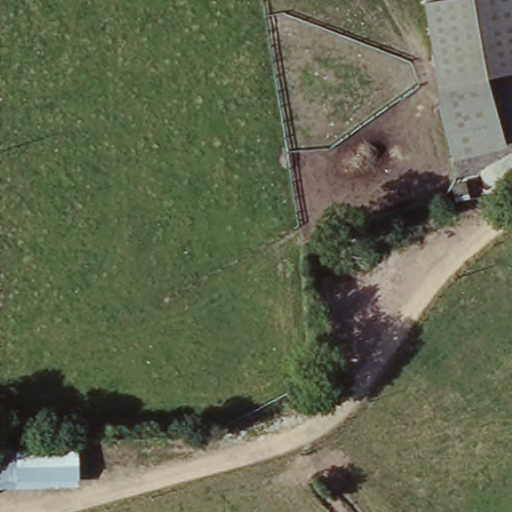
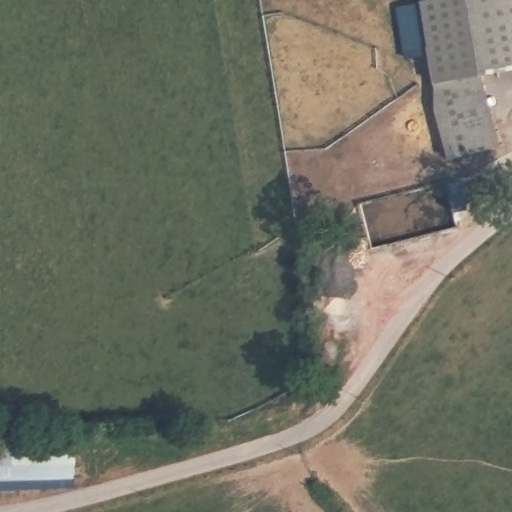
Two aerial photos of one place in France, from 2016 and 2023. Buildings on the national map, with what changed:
unchanged [(489,134),(502,205),(449,215),(441,166),(434,79),(423,9),(421,0),(512,0),(512,129),(489,134)]
unchanged [(74,492),(0,488),(0,441),(74,443),(74,492)]

